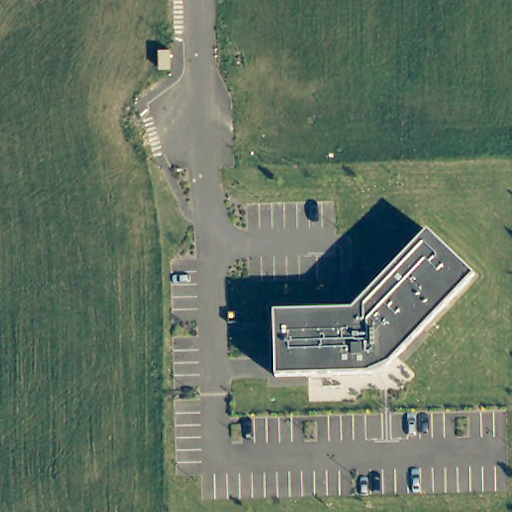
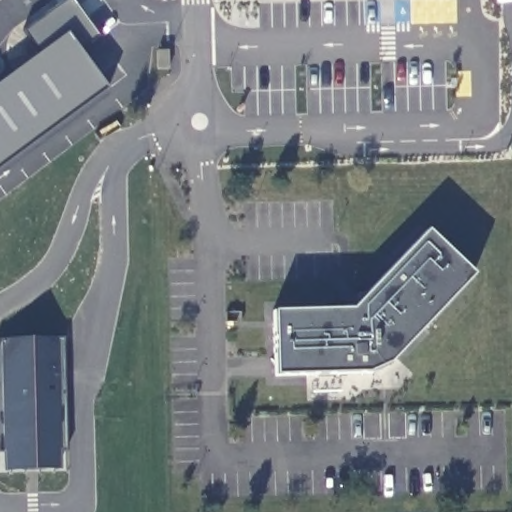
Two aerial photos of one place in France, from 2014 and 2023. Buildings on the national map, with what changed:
new [(40,52),(25,31),(67,0),(75,0),(101,35),(82,51),(108,89),(0,168),(0,82),(40,52)]
unchanged [(166,45),(166,63),(155,64),(155,45),(166,45)]
unchanged [(344,304),(360,288),(362,290),(424,225),(471,269),(386,359),(364,368),(272,371),(270,306),(344,304)]
new [(64,337),(67,450),(61,449),(61,469),(6,470),(5,451),(0,451),(0,340),(64,337)]

